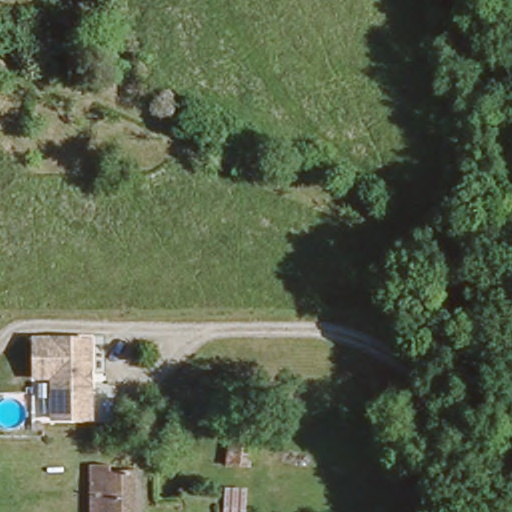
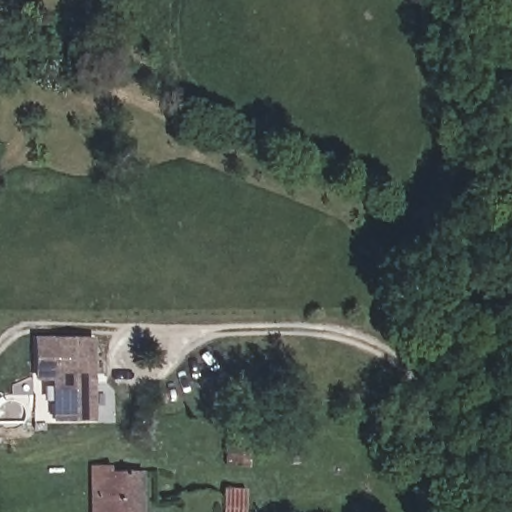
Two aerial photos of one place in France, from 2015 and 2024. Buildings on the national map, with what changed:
unchanged [(35,372),(34,333),(91,332),(91,413),(53,413),(53,372),(35,372)]
unchanged [(125,467),(135,467),(137,512),(85,512),(84,470),(125,467)]
unchanged [(228,512),(229,476),(251,477),(251,512),(228,512)]

